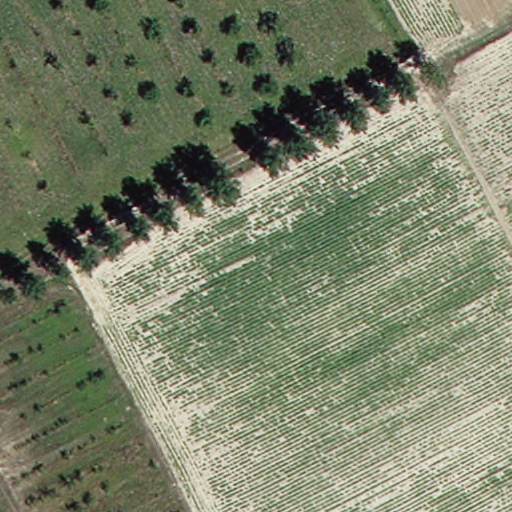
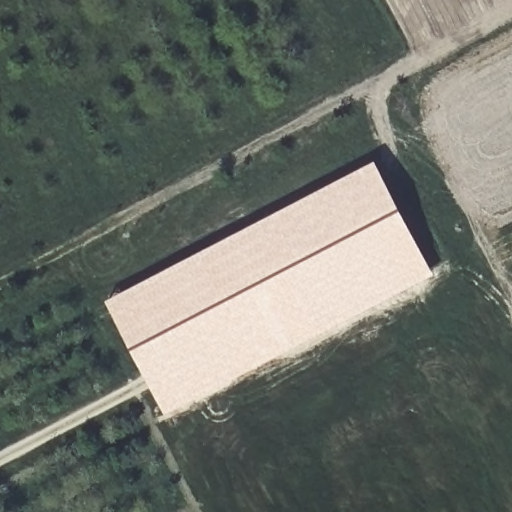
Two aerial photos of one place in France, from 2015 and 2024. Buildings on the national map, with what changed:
new [(166,414),(106,300),(375,160),(435,274),(166,414)]

